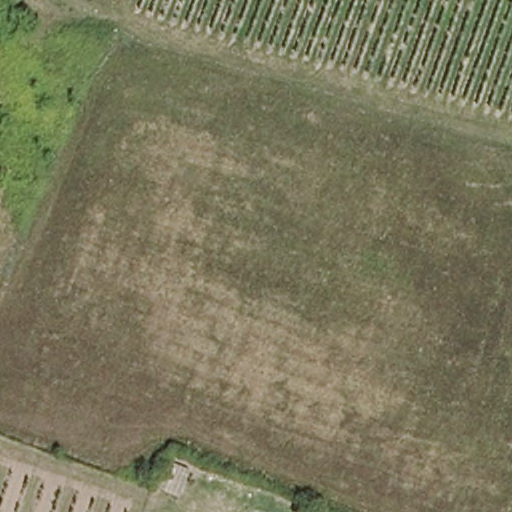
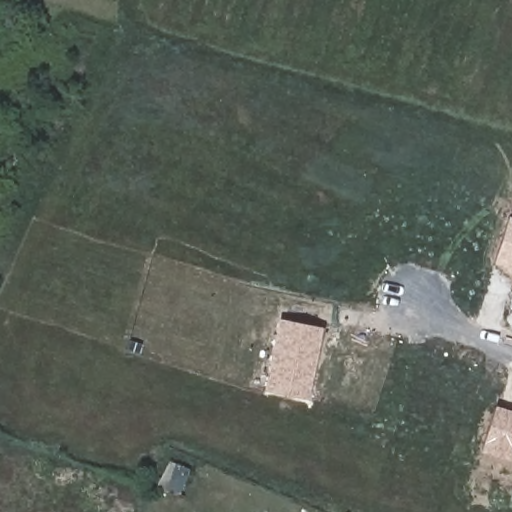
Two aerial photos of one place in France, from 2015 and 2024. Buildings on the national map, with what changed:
new [(506,267),(494,263),(510,216),(512,217),(512,273),(505,270),(506,267)]
new [(308,400),(264,390),(279,319),(323,327),(308,400)]
new [(512,461),(481,451),(496,406),(512,411),(512,461)]

